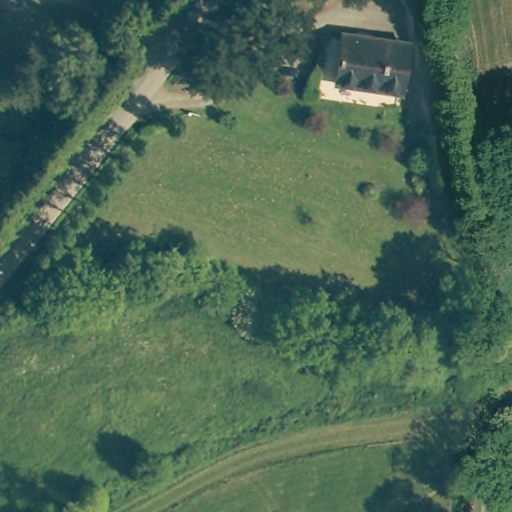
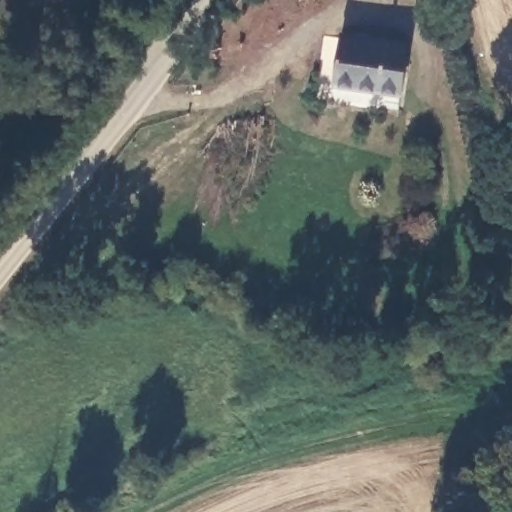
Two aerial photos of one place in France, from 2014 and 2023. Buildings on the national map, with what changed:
unchanged [(353,37),(420,48),(412,92),(347,81),(353,37)]

